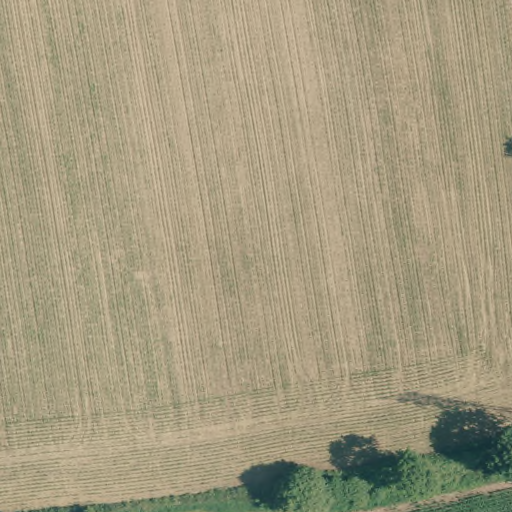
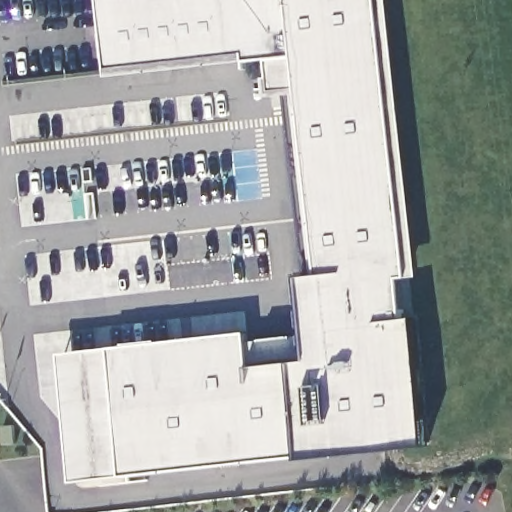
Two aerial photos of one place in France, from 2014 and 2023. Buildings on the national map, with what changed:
new [(410,279),(401,280),(405,319),(415,318),(430,444),(305,459),(75,483),(61,355),(111,350),(247,334),(248,343),(309,335),(303,279),(316,277),(296,94),(271,97),(267,60),(108,78),(99,0),(390,0),(420,278),(410,279)]
new [(12,424),(15,443),(4,444),(1,426),(12,424)]

